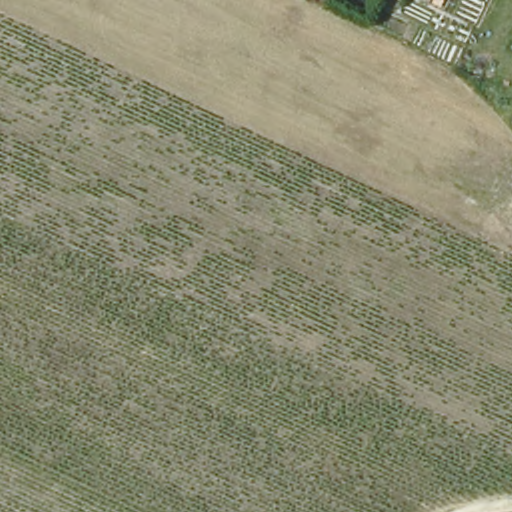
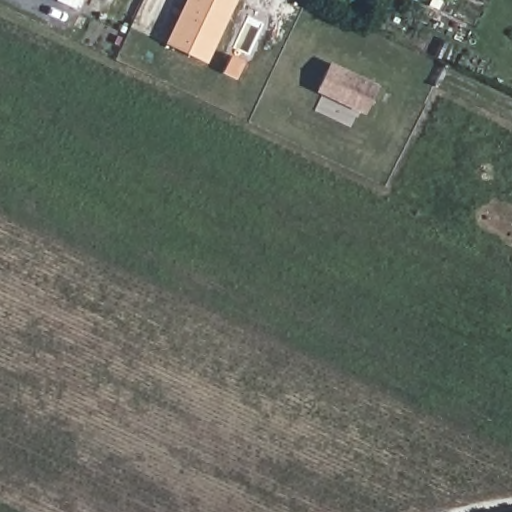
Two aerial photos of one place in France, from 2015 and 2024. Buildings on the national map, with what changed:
new [(224,8),(199,62),(160,43),(181,0),(229,0),(224,8)]
new [(316,91),(329,62),(377,84),(364,113),(316,91)]

